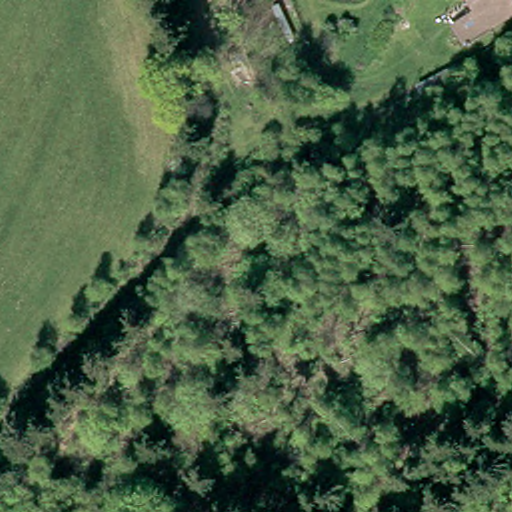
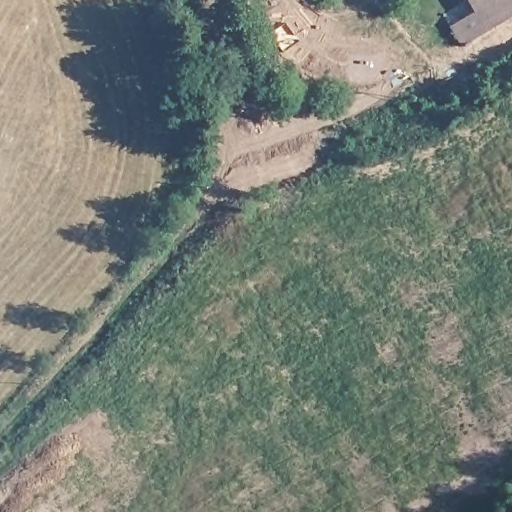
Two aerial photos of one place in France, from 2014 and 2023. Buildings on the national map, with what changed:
unchanged [(466,0),(512,0),(512,12),(481,28),(473,14),(466,0)]

